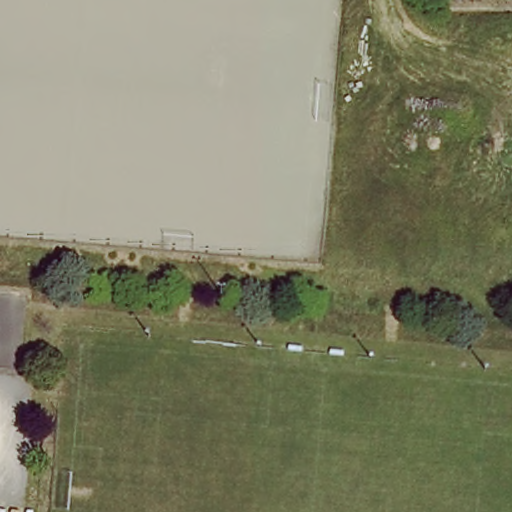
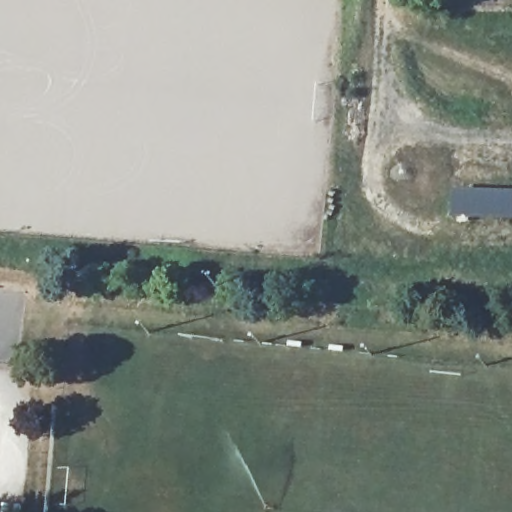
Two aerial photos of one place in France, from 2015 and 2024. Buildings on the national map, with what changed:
new [(454,218),(455,191),(512,192),(512,220),(454,218)]

